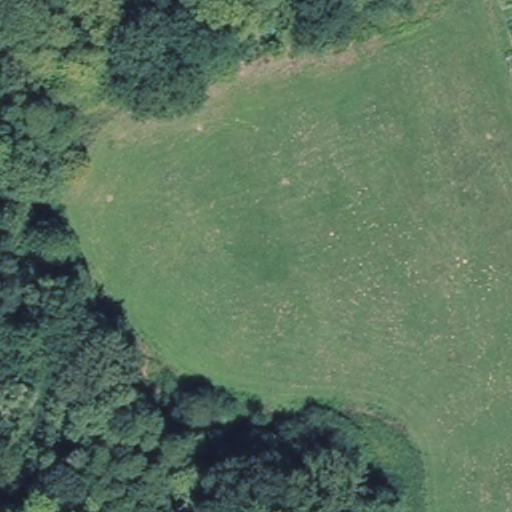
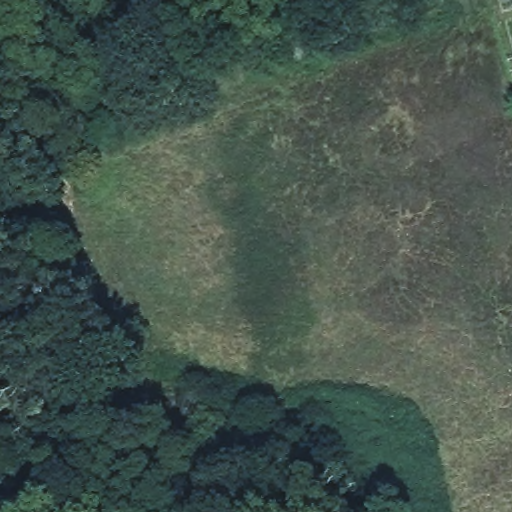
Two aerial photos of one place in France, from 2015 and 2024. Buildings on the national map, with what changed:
[]

